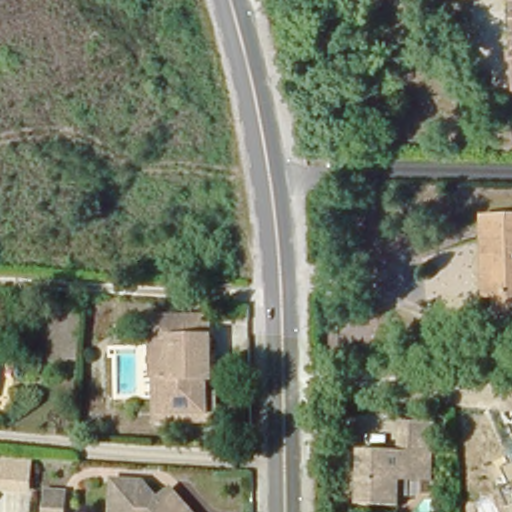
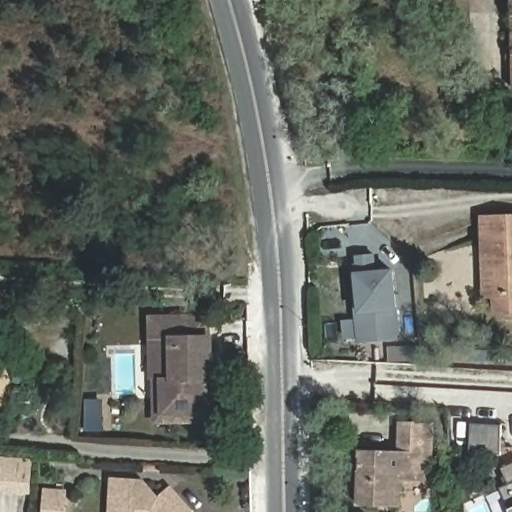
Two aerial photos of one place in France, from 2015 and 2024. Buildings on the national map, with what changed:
unchanged [(512,94),(511,0),(512,0),(512,94)]
unchanged [(512,221),(512,301),(485,302),(483,222),(512,221)]
new [(359,264),(358,257),(375,255),(376,272),(393,271),(400,340),(360,343),(357,312),(360,312),(356,265),(359,264)]
unchanged [(186,323),(184,339),(180,338),(179,366),(166,364),(166,376),(164,376),(147,377),(149,315),(196,314),(197,324),(186,323)]
unchanged [(165,416),(166,376),(166,364),(179,366),(180,338),(184,339),(186,323),(197,324),(221,326),(217,383),(209,382),(208,414),(165,416)]
unchanged [(439,420),(438,440),(432,440),(430,478),(399,477),(398,503),(357,502),(360,447),(398,448),(399,418),(439,420)]
new [(471,426),(501,427),(499,455),(470,453),(471,426)]
unchanged [(509,508),(502,488),(510,485),(502,469),(512,465),(512,512),(510,507),(509,508)]
unchanged [(151,491),(166,508),(179,497),(192,512),(122,512),(124,489),(151,491)]
unchanged [(42,512),(43,490),(66,491),(64,512),(42,512)]

